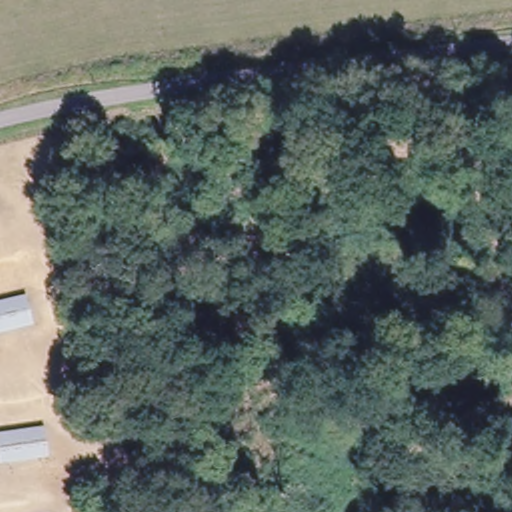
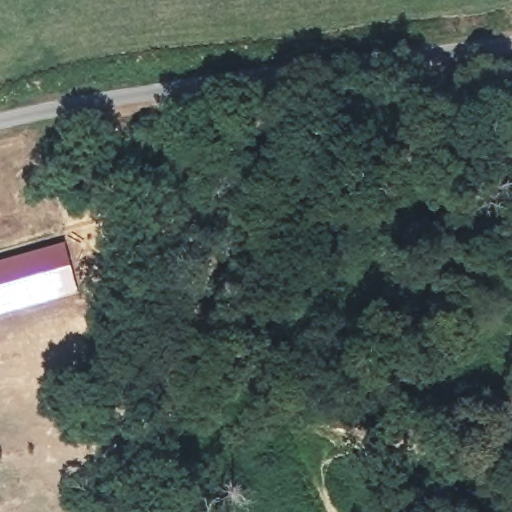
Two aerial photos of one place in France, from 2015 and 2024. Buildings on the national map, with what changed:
new [(81,292),(0,314),(0,261),(67,242),(81,292)]
demolished [(40,323),(0,333),(0,300),(34,292),(40,323)]
demolished [(0,465),(0,433),(43,430),(45,462),(0,465)]

